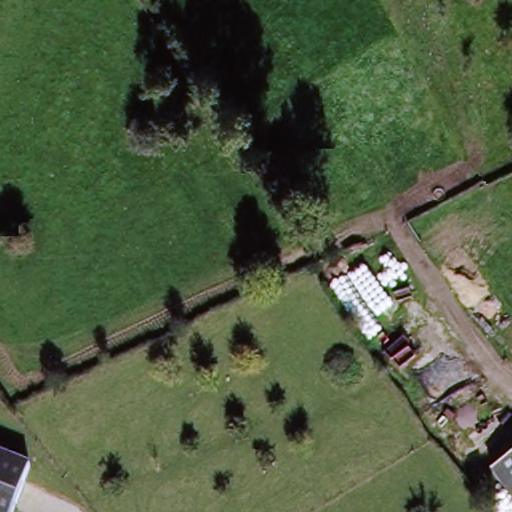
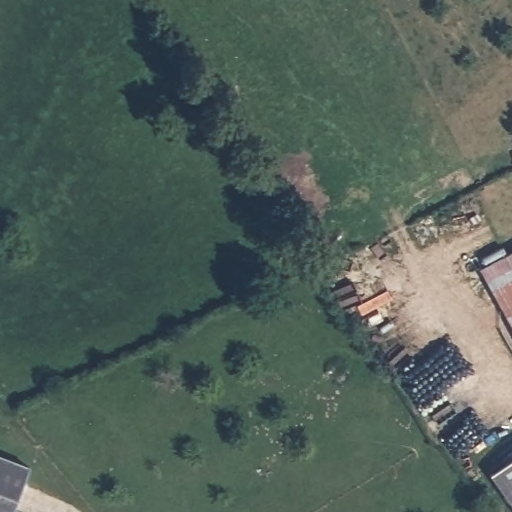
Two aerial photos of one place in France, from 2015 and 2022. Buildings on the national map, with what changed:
new [(512,250),(512,325),(481,267),(512,250)]
unchanged [(5,459),(29,466),(14,512),(0,512),(0,457),(5,459)]
unchanged [(512,463),(512,506),(491,478),(512,463)]

